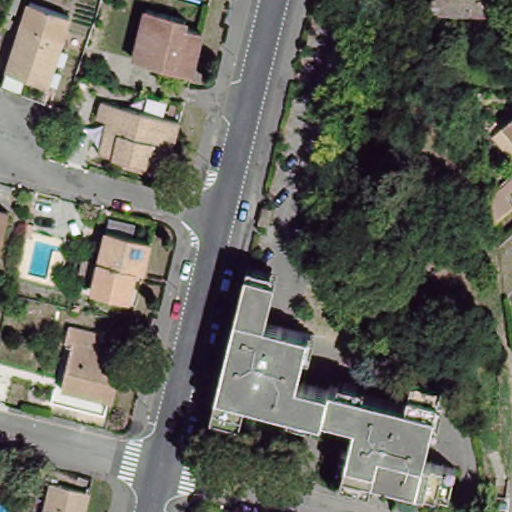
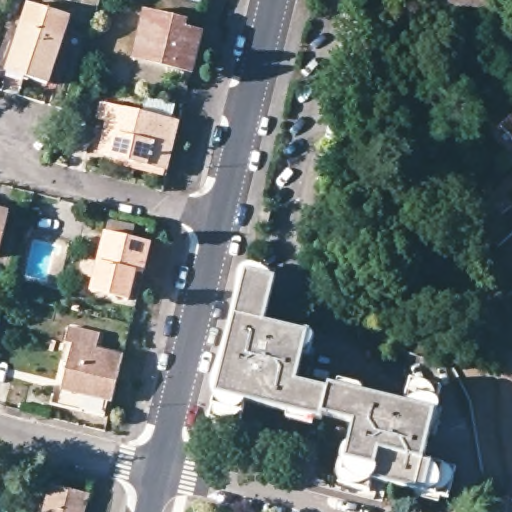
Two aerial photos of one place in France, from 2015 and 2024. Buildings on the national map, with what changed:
unchanged [(496,0),(496,14),(430,10),(430,0),(496,0)]
unchanged [(143,11),(182,22),(180,29),(197,33),(188,72),(186,79),(130,62),(132,52),(143,11)]
unchanged [(5,68),(20,21),(62,33),(45,81),(5,68)]
unchanged [(166,180),(98,162),(105,131),(97,129),(102,109),(179,129),(166,180)]
unchanged [(504,138),(512,131),(512,150),(504,138)]
unchanged [(0,243),(0,216),(7,218),(0,243)]
unchanged [(93,294),(109,234),(152,246),(144,276),(138,274),(129,303),(93,294)]
unchanged [(238,425),(208,417),(228,339),(245,268),(274,275),(264,320),(307,331),(296,380),(328,388),(322,414),(320,419),(244,400),(238,425)]
unchanged [(120,359),(106,414),(55,402),(68,347),(63,345),(66,331),(98,340),(95,354),(120,359)]
unchanged [(453,466),(446,493),(371,475),(369,486),(339,480),(354,422),(322,414),(328,388),(329,383),(405,401),(411,377),(441,384),(422,458),(453,466)]
unchanged [(46,484),(81,492),(86,493),(81,512),(39,512),(46,484)]

